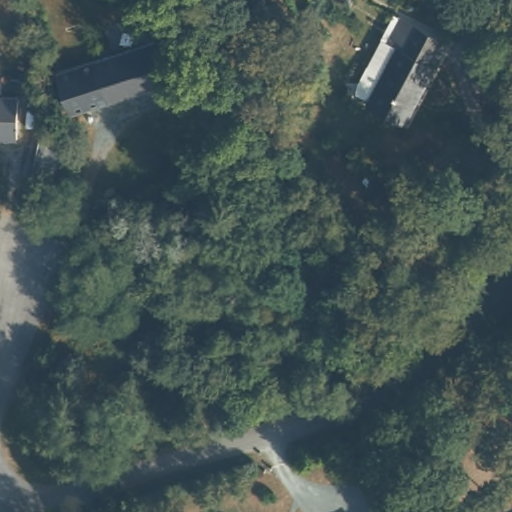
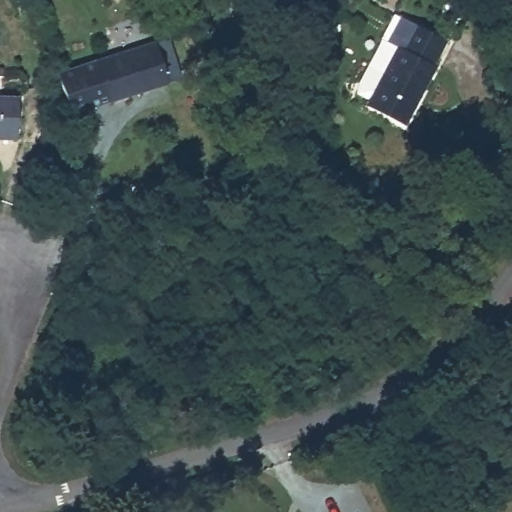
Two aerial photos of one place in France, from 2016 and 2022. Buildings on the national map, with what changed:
unchanged [(406,126),(370,107),(373,101),(355,89),(368,63),(387,72),(402,47),(393,41),(405,20),(415,26),(447,42),(406,126)]
unchanged [(102,58),(100,54),(161,30),(174,73),(114,96),(110,89),(95,96),(85,64),(102,58)]
unchanged [(19,93),(19,134),(0,133),(0,93),(19,93)]

